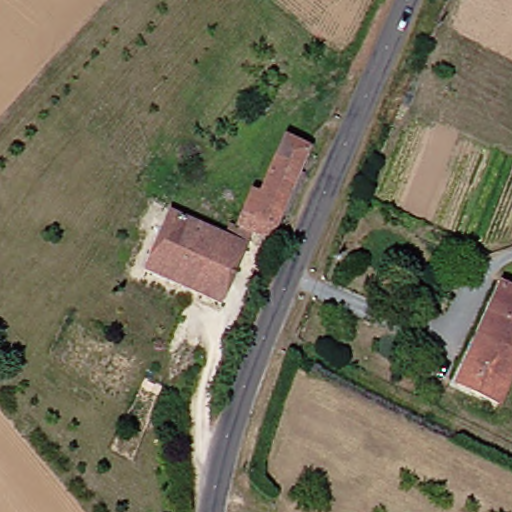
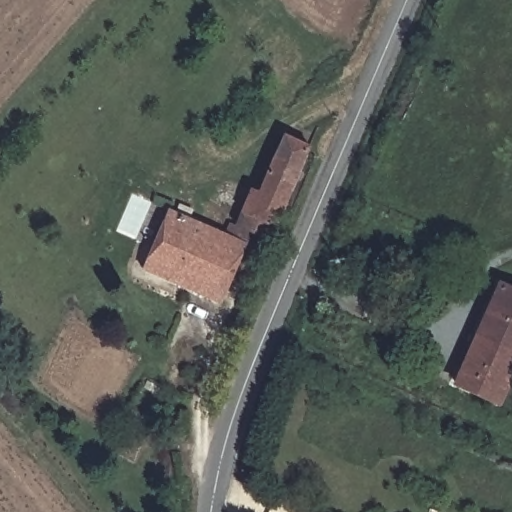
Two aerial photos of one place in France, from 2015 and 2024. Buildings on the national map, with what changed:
unchanged [(231,229),(248,190),(257,193),(280,140),(307,152),(263,246),(231,229)]
unchanged [(137,273),(163,211),(216,235),(188,295),(137,273)]
unchanged [(216,235),(243,245),(215,308),(188,295),(216,235)]
unchanged [(512,288),(512,381),(496,411),(448,383),(502,283),(512,288)]

